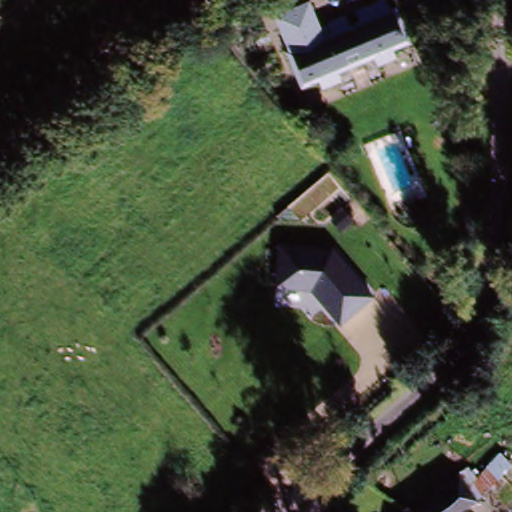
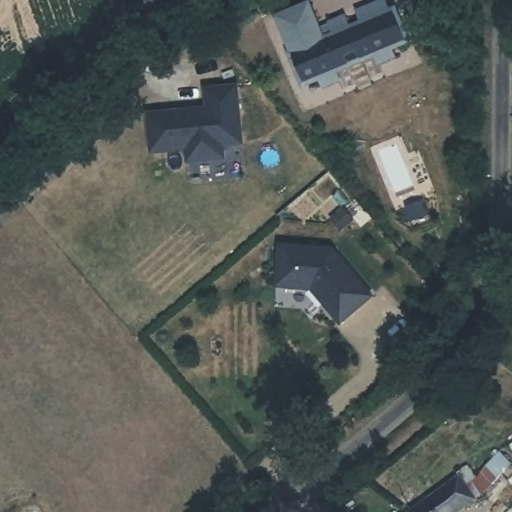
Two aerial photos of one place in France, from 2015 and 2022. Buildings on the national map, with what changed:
unchanged [(373,55),(336,72),(340,81),(324,89),(320,80),(306,86),(275,25),(304,11),(314,33),(342,21),(346,29),(355,24),(356,14),(381,1),(386,8),(391,5),(408,36),(393,46),(396,52),(377,62),(373,55)]
new [(205,106),(202,87),(238,85),(245,145),(225,147),(226,161),(185,164),(184,151),(149,155),(143,114),(205,106)]
unchanged [(375,296),(341,325),(311,290),(275,287),(278,245),(332,249),(375,296)]
unchanged [(458,477),(475,499),(457,512),(411,512),(458,477)]

